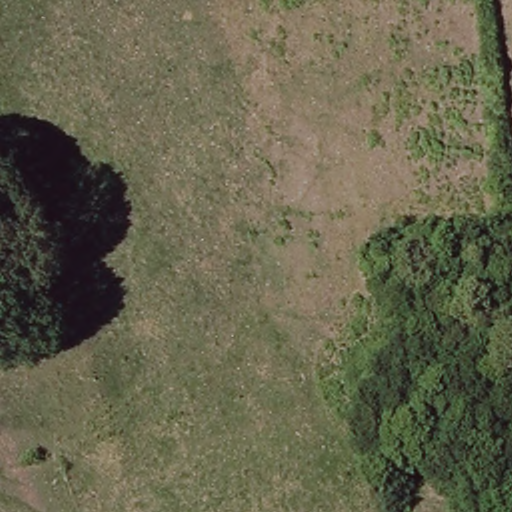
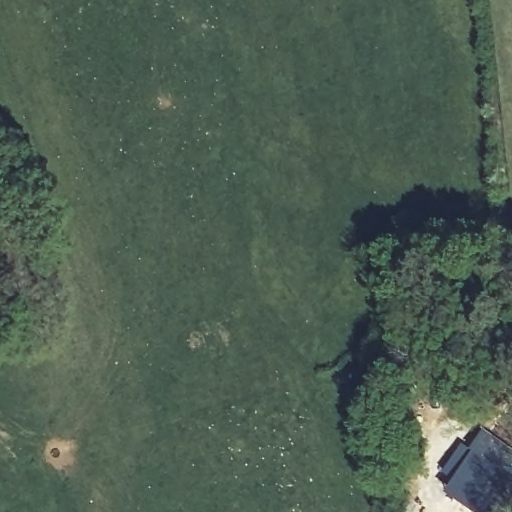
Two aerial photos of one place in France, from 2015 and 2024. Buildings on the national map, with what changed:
new [(467,445),(480,427),(512,450),(512,482),(491,512),(474,512),(442,488),(448,479),(437,471),(460,440),(467,445)]

